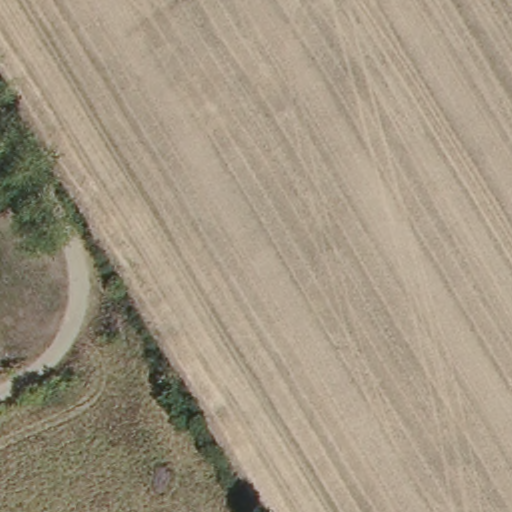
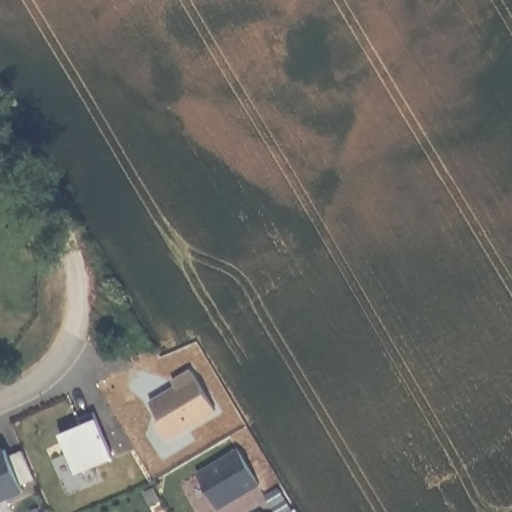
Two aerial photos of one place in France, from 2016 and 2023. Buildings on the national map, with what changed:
new [(174,389),(171,384),(189,372),(215,410),(167,442),(156,426),(160,423),(149,406),(174,389)]
new [(78,429),(75,421),(92,414),(112,460),(74,476),(58,437),(78,429)]
new [(5,451),(8,459),(22,453),(35,481),(21,487),(24,495),(0,506),(0,453),(5,451)]
new [(258,488),(218,512),(217,512),(194,476),(235,451),(258,488)]

